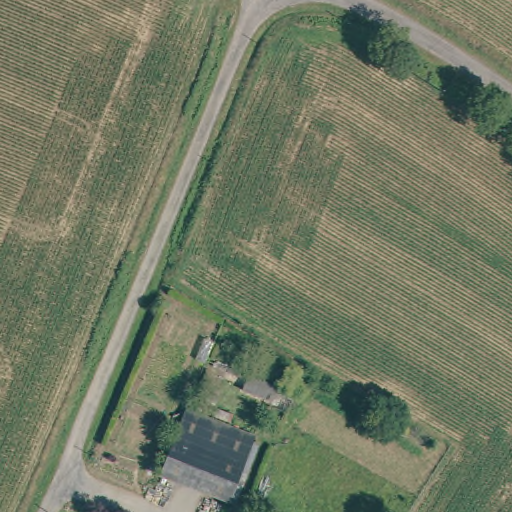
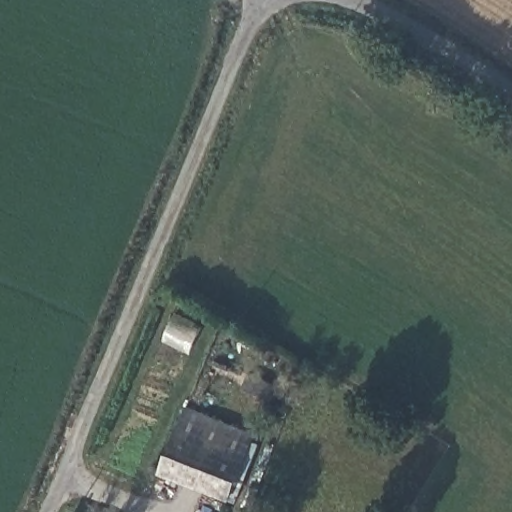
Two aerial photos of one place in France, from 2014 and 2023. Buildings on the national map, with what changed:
unchanged [(258,383),(262,370),(287,381),(282,391),(258,383)]
unchanged [(157,470),(177,420),(182,409),(250,435),(226,497),(212,491),(157,470)]

